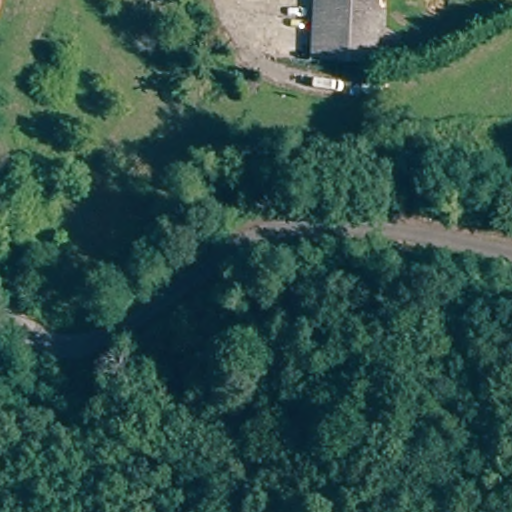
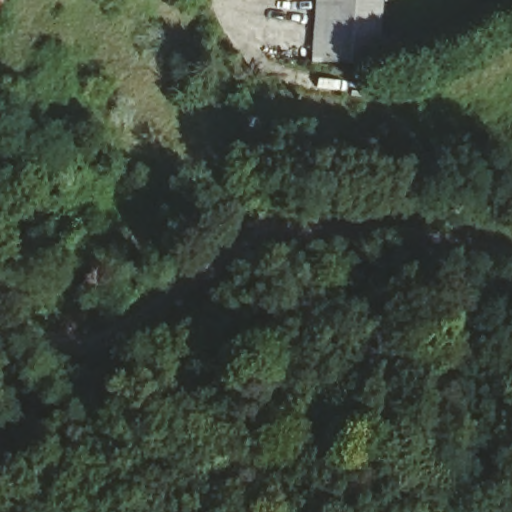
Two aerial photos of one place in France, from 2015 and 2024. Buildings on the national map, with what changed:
unchanged [(0,16),(0,0),(8,0),(0,16)]
unchanged [(324,55),(327,0),(381,0),(378,58),(324,55)]

